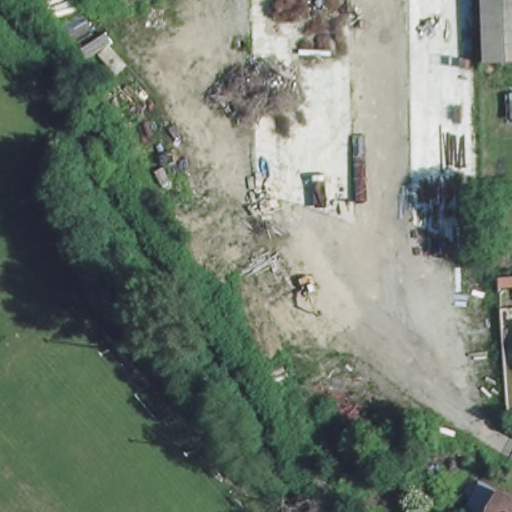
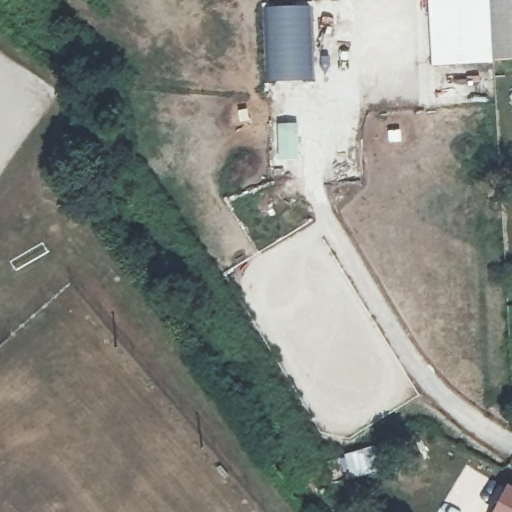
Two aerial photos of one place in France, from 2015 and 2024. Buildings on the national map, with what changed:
new [(427,0),(486,0),(486,7),(495,63),(432,65),(427,0)]
unchanged [(495,63),(486,7),(486,0),(512,0),(512,62),(495,63)]
new [(311,5),(313,80),(263,81),(261,7),(311,5)]
new [(296,122),(298,160),(277,160),(276,122),(296,122)]
unchanged [(512,491),(512,512),(483,512),(497,485),(512,491)]

